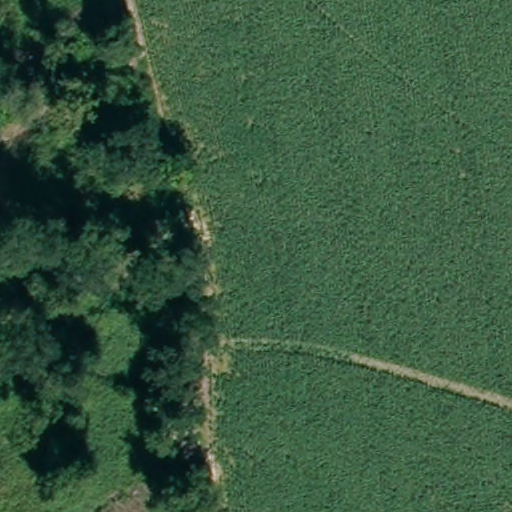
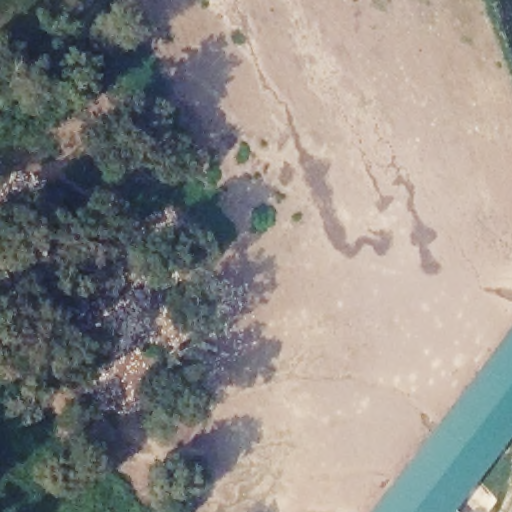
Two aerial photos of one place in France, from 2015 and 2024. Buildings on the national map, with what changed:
new [(512,328),(512,436),(453,512),(370,512),(512,328)]

